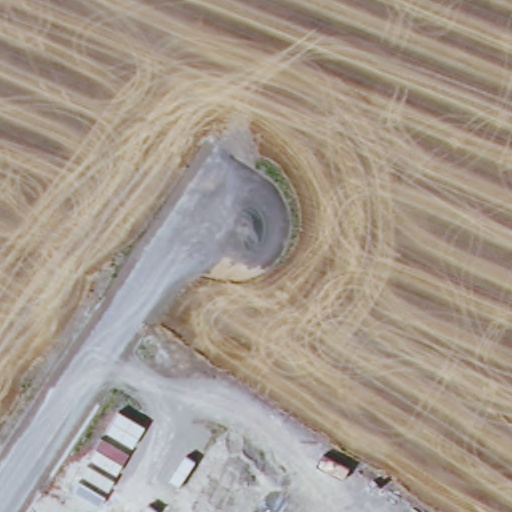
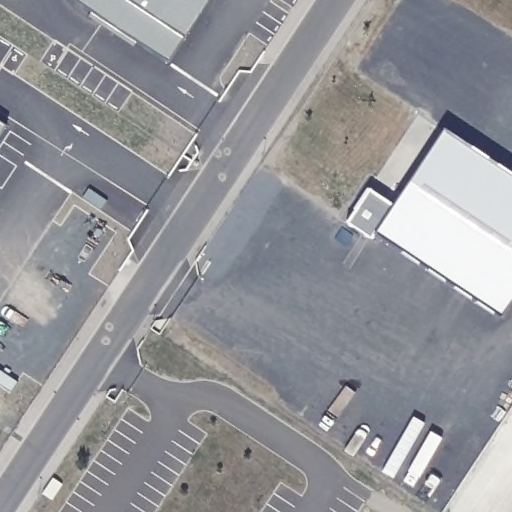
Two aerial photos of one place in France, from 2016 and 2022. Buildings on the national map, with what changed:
new [(68,0),(212,0),(169,65),(68,0)]
new [(7,129),(0,140),(0,124),(7,129)]
new [(444,130),(512,176),(512,303),(500,320),(375,236),(393,207),(444,130)]
new [(369,191),(393,207),(375,236),(372,240),(347,224),(369,191)]

